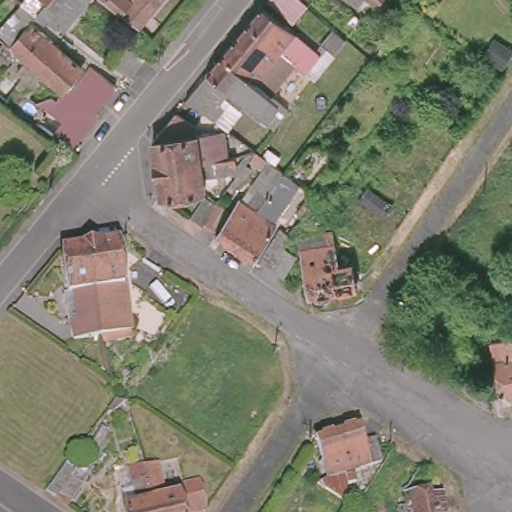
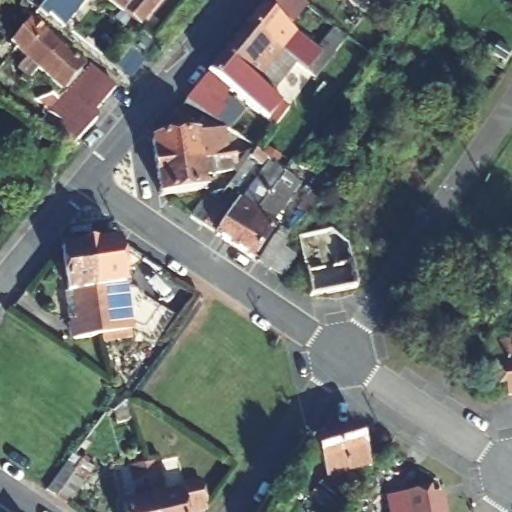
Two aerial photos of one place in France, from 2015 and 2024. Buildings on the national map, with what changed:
unchanged [(64,27),(33,3),(30,7),(22,1),(23,0),(87,0),(64,27)]
unchanged [(107,0),(160,0),(140,23),(124,10),(122,13),(107,0)]
unchanged [(287,27),(320,53),(306,69),(296,61),(279,48),(248,23),(268,0),(299,0),(301,1),(299,4),(303,7),(287,27)]
unchanged [(22,1),(30,7),(37,12),(31,19),(80,63),(60,88),(38,70),(23,89),(17,85),(26,74),(18,68),(26,58),(14,48),(0,66),(0,28),(22,1)]
unchanged [(296,61),(282,77),(278,73),(267,64),(236,38),(248,23),(279,48),(296,61)]
unchanged [(321,43),(333,29),(344,38),(334,52),(321,43)]
unchanged [(236,38),(267,64),(278,73),(282,77),(270,92),(223,53),(236,38)]
unchanged [(123,43),(143,59),(128,76),(109,60),(123,43)]
unchanged [(274,110),(264,101),(256,111),(229,91),(221,102),(228,109),(221,118),(188,96),(223,53),(270,92),(281,101),(274,110)]
unchanged [(54,135),(64,123),(48,110),(64,91),(70,95),(94,67),(114,85),(96,108),(98,116),(70,148),(54,135)]
unchanged [(0,93),(0,72),(14,83),(10,87),(40,110),(33,119),(0,93)]
unchanged [(216,169),(216,160),(200,162),(156,168),(152,139),(176,110),(196,125),(198,134),(228,131),(233,158),(235,166),(216,169)]
unchanged [(203,190),(159,195),(158,181),(156,168),(200,162),(203,190)]
unchanged [(211,233),(234,198),(251,210),(259,198),(262,194),(253,188),(261,177),(270,183),(278,188),(269,198),(271,200),(260,216),(269,223),(246,256),(238,250),(228,244),(223,241),(211,233)]
unchanged [(321,200),(317,203),(306,213),(304,214),(297,203),(311,191),(321,200)]
unchanged [(89,238),(118,234),(132,333),(106,336),(100,317),(89,238)]
unchanged [(296,240),(328,234),(334,263),(347,261),(351,287),(329,290),(305,295),(296,240)]
unchanged [(277,276),(264,267),(252,260),(269,235),(279,241),(281,242),(278,246),(291,255),(277,276)]
unchanged [(103,329),(74,332),(73,316),(76,316),(73,285),(68,285),(63,242),(89,238),(100,317),(103,329)]
unchanged [(473,345),(456,372),(443,363),(461,337),(473,345)]
unchanged [(493,385),(487,347),(512,343),(512,398),(503,399),(501,384),(493,385)]
unchanged [(363,464),(346,470),(349,480),(341,483),(337,473),(330,475),(331,478),(324,480),(309,439),(311,437),(351,426),(363,464)]
unchanged [(164,494),(184,490),(182,480),(198,476),(206,508),(189,512),(153,512),(143,464),(156,461),(164,494)]
unchanged [(126,512),(124,503),(136,501),(133,485),(138,484),(134,465),(143,464),(153,512),(126,512)]
unchanged [(56,496),(75,467),(86,475),(67,503),(56,496)]
unchanged [(399,507),(399,505),(408,503),(406,490),(426,487),(426,492),(441,489),(445,512),(392,512),(392,508),(399,507)]

